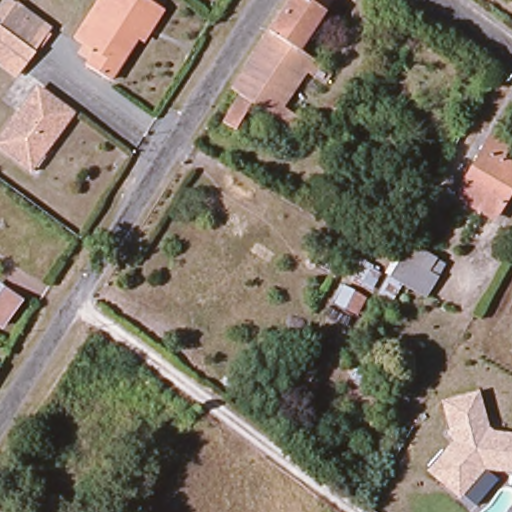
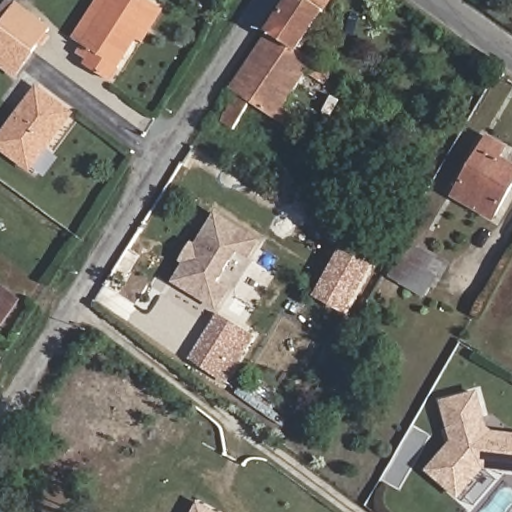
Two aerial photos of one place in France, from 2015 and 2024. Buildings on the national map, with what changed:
unchanged [(145,46),(137,42),(110,84),(86,70),(95,56),(84,49),(73,43),(100,0),(141,0),(158,11),(165,15),(145,46)]
unchanged [(332,0),(297,53),(330,76),(323,87),(305,75),(281,109),(299,122),(290,134),(247,106),(229,134),(215,125),(234,97),(227,92),(290,0),(332,0)]
unchanged [(0,36),(0,9),(4,4),(44,35),(28,57),(0,36)]
unchanged [(11,80),(0,72),(0,36),(28,57),(11,80)]
unchanged [(22,166),(0,150),(0,136),(34,91),(67,116),(42,148),(26,170),(22,166)]
unchanged [(498,163),(512,172),(512,187),(492,221),(454,199),(486,144),(504,153),(498,163)]
new [(249,259),(237,252),(219,281),(230,288),(217,309),(170,281),(182,263),(179,261),(191,241),(195,243),(215,210),(261,239),(249,259)]
new [(341,246),(375,264),(346,314),(313,295),(341,246)]
unchanged [(403,247),(442,267),(423,300),(407,292),(403,296),(395,293),(387,307),(375,301),(403,247)]
unchanged [(13,300),(0,320),(0,292),(13,300)]
new [(189,358),(207,329),(245,354),(226,382),(189,358)]
unchanged [(512,432),(512,473),(486,470),(458,498),(427,472),(452,444),(441,402),(480,392),(490,430),(512,432)]
new [(196,501),(217,512),(191,512),(196,501)]

